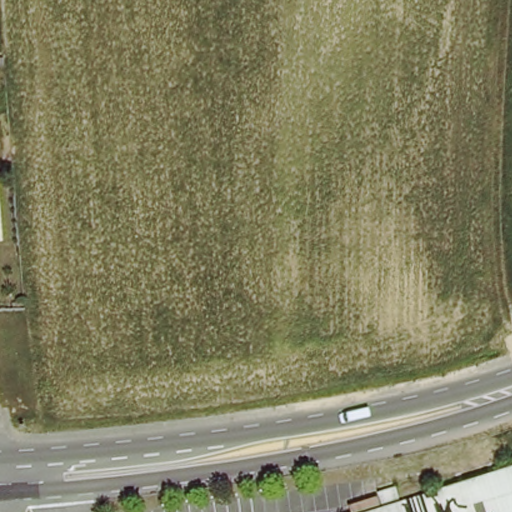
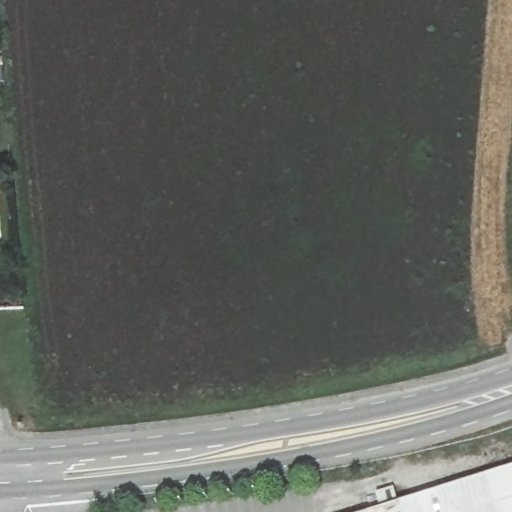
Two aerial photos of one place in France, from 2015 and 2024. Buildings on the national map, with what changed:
unchanged [(512,512),(353,512),(512,460),(512,512)]

